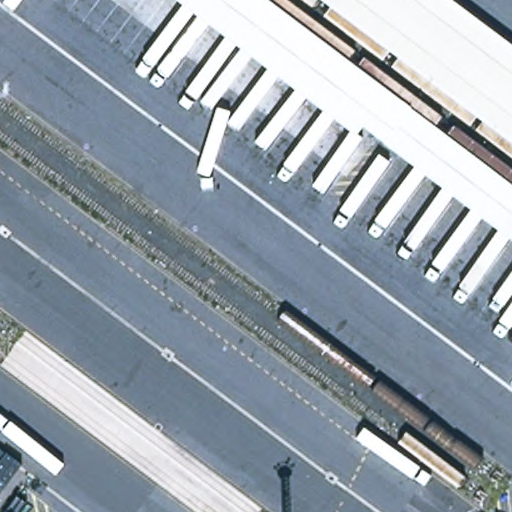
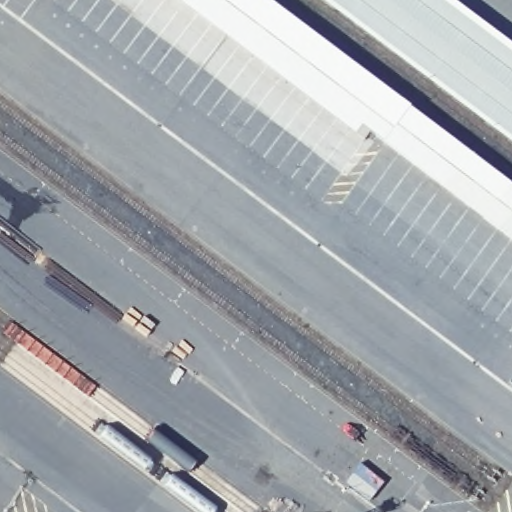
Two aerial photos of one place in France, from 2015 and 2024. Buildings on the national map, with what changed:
unchanged [(512,189),(512,239),(364,128),(357,139),(171,0),(260,0),(512,189)]
unchanged [(323,0),(453,0),(512,45),(512,141),(323,0)]

